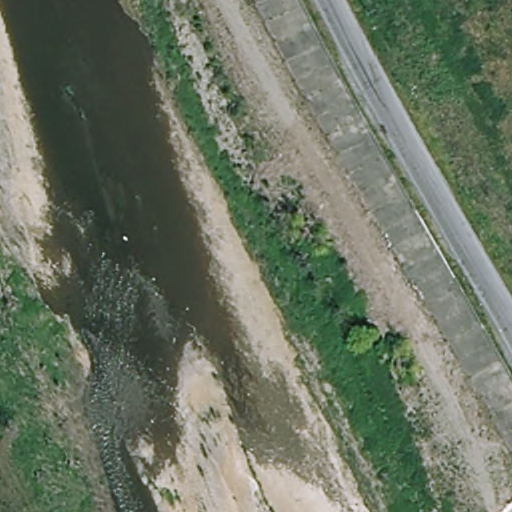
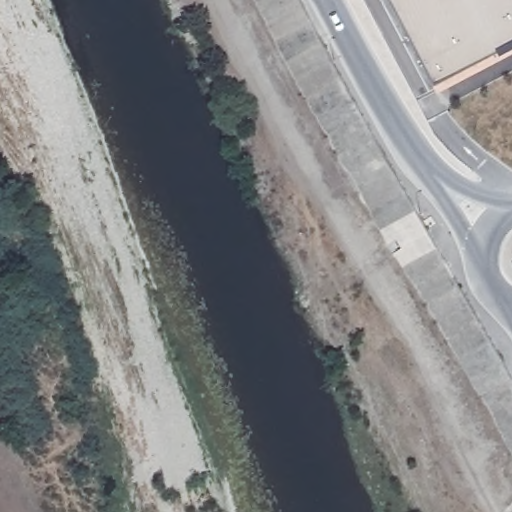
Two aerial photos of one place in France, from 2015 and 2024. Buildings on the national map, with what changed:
new [(499,59),(496,55),(435,87),(388,0),(512,0),(512,51),(499,59)]

